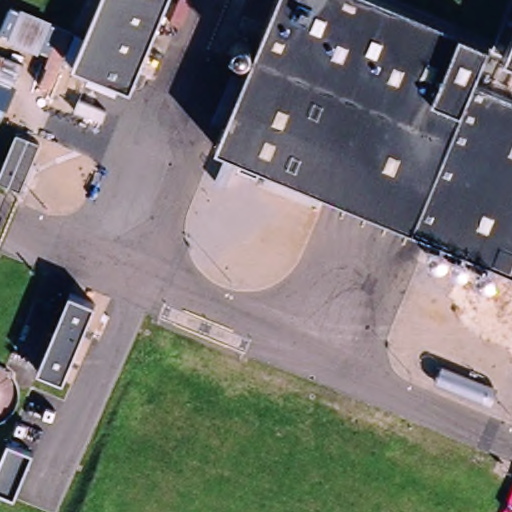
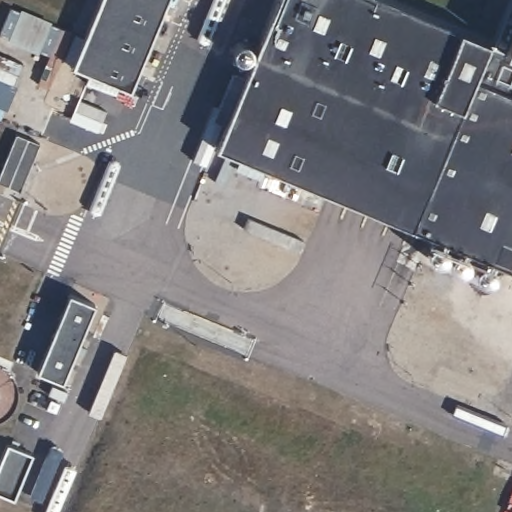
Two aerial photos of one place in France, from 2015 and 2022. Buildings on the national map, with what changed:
unchanged [(72,61),(96,0),(164,0),(130,85),(72,61)]
unchanged [(215,146),(274,0),(389,0),(489,40),(504,0),(512,0),(512,268),(303,185),(215,146)]
unchanged [(249,52),(249,53),(249,54),(248,55),(247,55),(247,56),(247,57),(246,58),(246,59),(245,59),(245,60),(244,60),(243,60),(242,60),(242,61),(241,61),(240,61),(239,61),(237,61),(236,61),(235,61),(235,60),(234,60),(233,60),(232,60),(232,59),(231,59),(231,58),(230,58),(230,57),(230,56),(229,56),(229,55),(229,54),(229,53),(228,53),(228,52),(228,51),(228,50),(229,50),(229,49),(229,48),(229,47),(229,46),(230,46),(230,45),(231,44),(232,44),(232,43),(232,42),(233,42),(234,42),(235,42),(235,41),(236,41),(237,41),(238,41),(239,41),(240,41),(241,41),(242,41),(242,42),(243,42),(244,42),(245,43),(245,44),(246,44),(246,45),(247,45),(247,46),(247,47),(248,47),(248,48),(249,48),(249,49),(249,50),(249,51),(249,52)]
unchanged [(2,182),(20,135),(44,144),(25,191),(2,182)]
unchanged [(445,252),(445,253),(445,254),(445,255),(445,256),(444,256),(444,257),(444,258),(443,258),(443,259),(442,259),(442,260),(441,260),(441,261),(440,261),(439,262),(438,262),(437,262),(437,263),(436,263),(435,263),(433,263),(432,263),(431,263),(430,262),(429,262),(428,262),(428,261),(427,261),(427,260),(426,260),(425,260),(425,259),(425,258),(424,258),(424,257),(424,256),(423,256),(423,255),(423,254),(422,254),(422,253),(422,251),(422,250),(423,250),(423,249),(423,248),(424,248),(424,247),(424,246),(425,246),(425,245),(425,244),(426,244),(427,244),(427,243),(427,242),(428,242),(429,242),(429,241),(430,241),(431,241),(432,241),(432,240),(433,240),(436,240),(437,241),(439,242),(440,242),(442,245),(443,245),(444,246),(444,247),(445,247),(445,248),(445,249),(445,250),(445,251),(445,252)]
unchanged [(469,261),(469,262),(469,263),(469,264),(468,265),(467,265),(467,266),(467,267),(466,267),(466,268),(465,268),(465,269),(465,270),(464,270),(463,270),(462,270),(462,271),(461,271),(460,271),(459,271),(458,271),(457,271),(456,271),(455,271),(454,271),(454,270),(453,270),(452,270),(451,270),(451,269),(450,269),(450,268),(450,267),(449,267),(449,266),(448,266),(448,265),(447,265),(447,264),(447,263),(447,262),(447,261),(447,260),(447,259),(447,258),(447,257),(447,256),(448,256),(448,255),(449,255),(449,254),(450,254),(450,253),(450,252),(451,252),(452,252),(452,251),(453,251),(454,250),(455,250),(456,250),(459,250),(460,250),(462,250),(465,251),(466,253),(467,254),(467,255),(467,256),(468,256),(468,257),(469,257),(469,258),(469,259),(469,260),(469,261)]
unchanged [(95,304),(64,381),(39,371),(71,294),(95,304)]
unchanged [(32,455),(15,499),(0,493),(0,466),(8,445),(32,455)]

